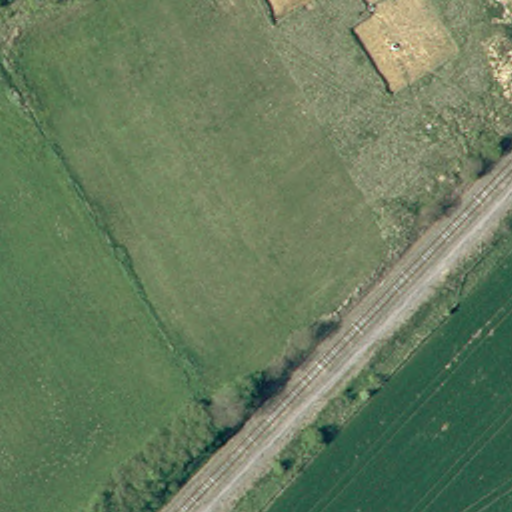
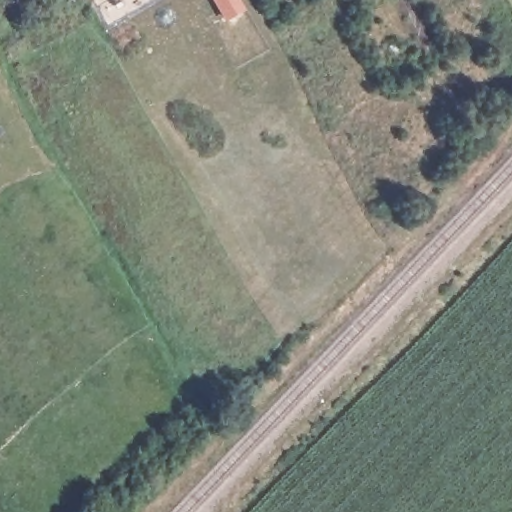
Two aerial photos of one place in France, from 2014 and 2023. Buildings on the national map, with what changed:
new [(242,10),(226,19),(215,0),(236,0),(242,10)]

